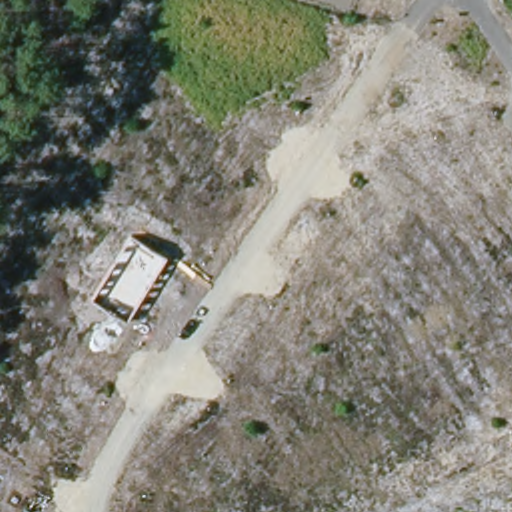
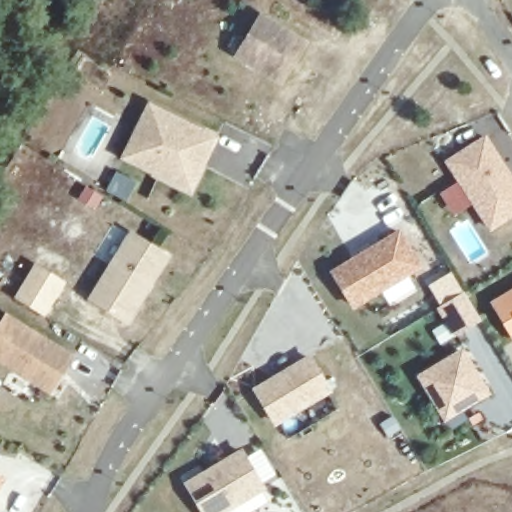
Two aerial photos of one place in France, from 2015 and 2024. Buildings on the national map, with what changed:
unchanged [(253,26),(299,52),(276,92),(230,67),(253,26)]
new [(221,135),(193,192),(121,159),(149,100),(221,135)]
new [(512,173),(512,218),(491,230),(445,160),(487,135),(512,173)]
new [(116,172),(133,184),(123,200),(105,189),(116,172)]
new [(424,266),(355,310),(329,270),(400,226),(424,266)]
new [(170,255),(128,323),(87,298),(131,229),(170,255)]
new [(33,272),(56,286),(40,312),(17,298),(33,272)]
new [(512,286),(512,335),(489,300),(512,286)]
new [(481,322),(456,338),(437,308),(464,292),(481,322)]
new [(77,355),(53,395),(0,363),(0,321),(6,311),(77,355)]
new [(463,346),(492,393),(448,421),(417,375),(463,346)]
new [(311,353),(334,391),(276,426),(252,388),(311,353)]
new [(227,512),(202,512),(184,482),(243,448),(267,488),(227,512)]
new [(0,487),(0,473),(6,477),(0,487)]

